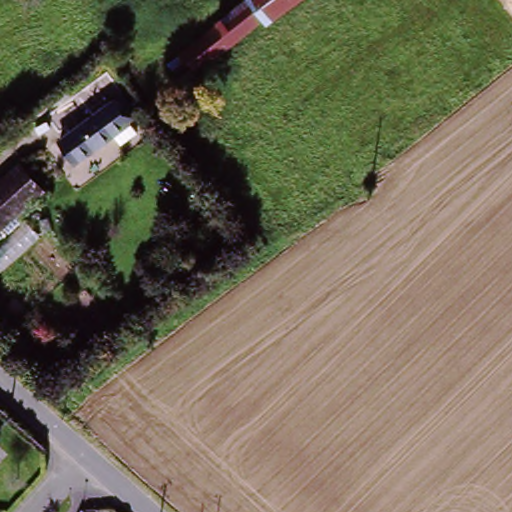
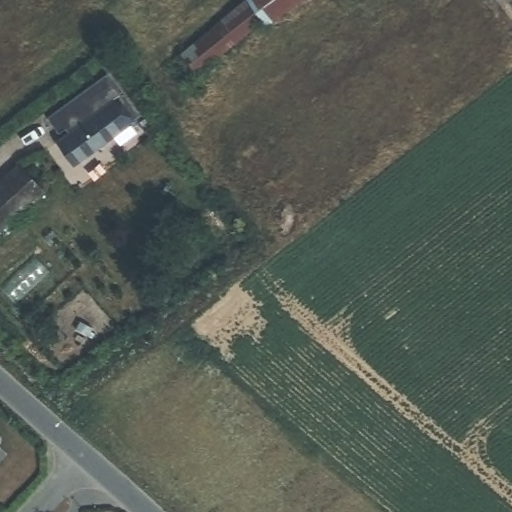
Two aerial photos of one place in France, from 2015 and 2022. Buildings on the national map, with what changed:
unchanged [(243,0),(282,0),(183,94),(164,73),(243,0)]
unchanged [(113,96),(130,117),(70,170),(50,149),(113,96)]
unchanged [(0,235),(0,178),(19,161),(46,192),(0,235)]
unchanged [(1,445),(0,445),(0,444),(1,445)]

